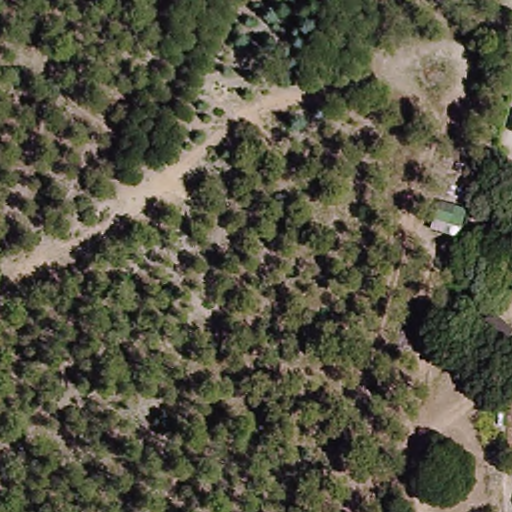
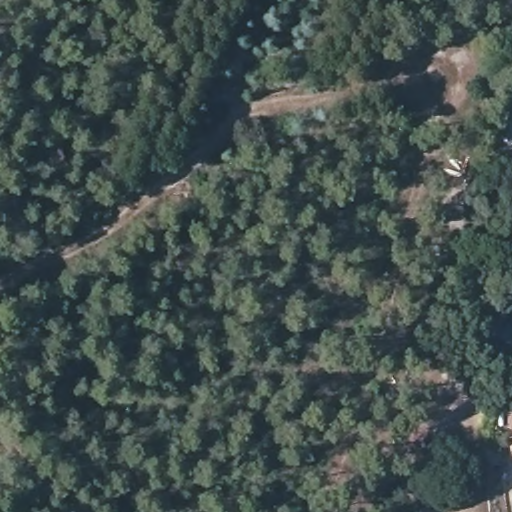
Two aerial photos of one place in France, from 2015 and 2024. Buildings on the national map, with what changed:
unchanged [(495,411),(512,410),(512,450),(498,451),(495,411)]

